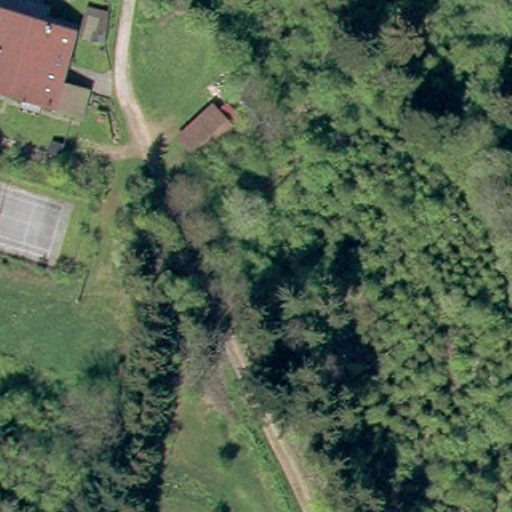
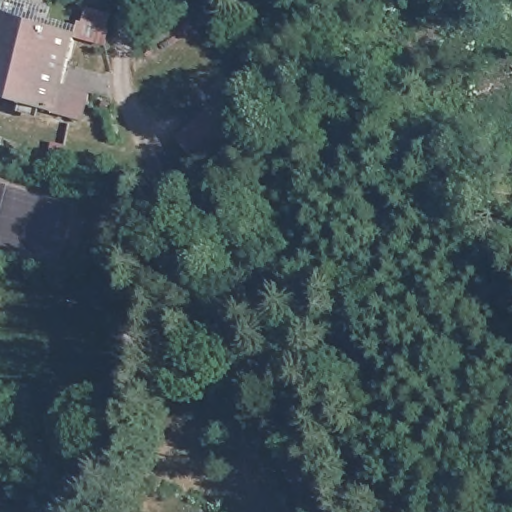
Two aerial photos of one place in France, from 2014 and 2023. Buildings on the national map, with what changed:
unchanged [(80,112),(51,106),(0,95),(0,16),(66,27),(56,83),(84,89),(80,112)]
unchanged [(213,104),(242,135),(203,171),(172,139),(213,104)]

